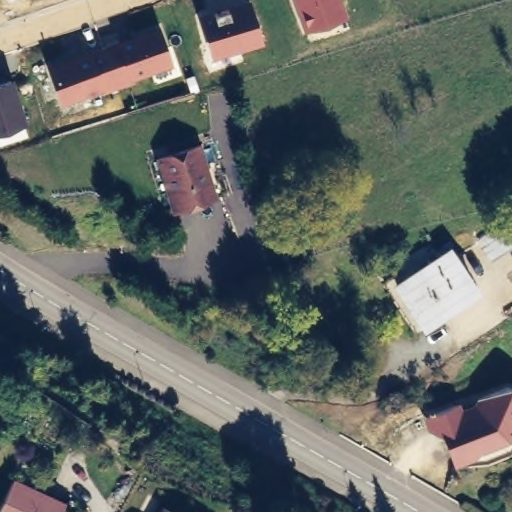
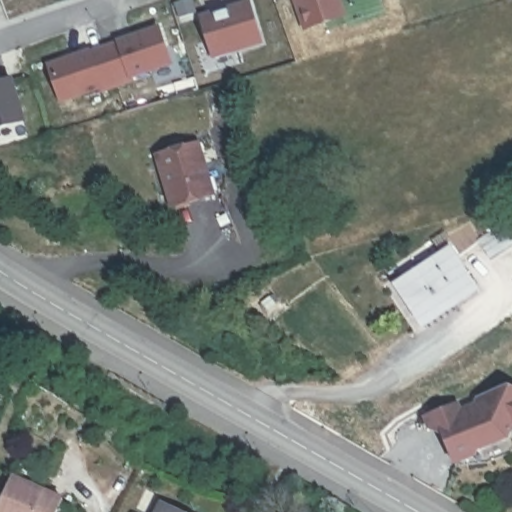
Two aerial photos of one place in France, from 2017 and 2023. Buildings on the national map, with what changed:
unchanged [(307,27),(298,0),(337,0),(342,16),(307,27)]
unchanged [(248,4),(258,40),(212,53),(203,17),(248,4)]
unchanged [(172,62),(130,74),(132,81),(117,86),(104,45),(157,30),(172,62)]
unchanged [(65,101),(60,103),(46,63),(50,61),(104,45),(117,86),(65,101)]
unchanged [(0,129),(0,80),(13,76),(25,120),(12,125),(0,129)]
unchanged [(151,150),(192,137),(197,156),(195,158),(205,189),(166,201),(151,150)]
unchanged [(445,247),(477,287),(425,325),(397,284),(445,247)]
unchanged [(509,440),(480,450),(478,455),(453,463),(437,430),(427,435),(420,419),(460,400),(463,406),(477,401),(476,398),(510,385),(512,386),(512,435),(509,440)]
unchanged [(62,501),(57,512),(0,512),(0,505),(12,478),(62,501)]
unchanged [(161,507),(172,512),(159,512),(161,507)]

